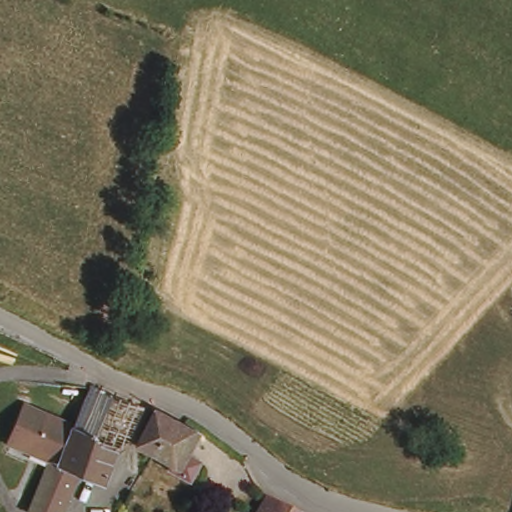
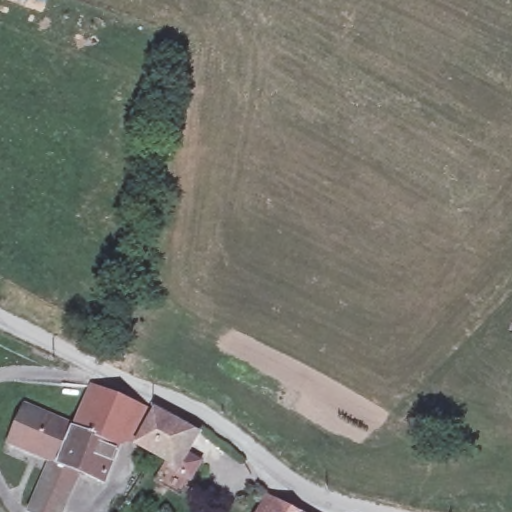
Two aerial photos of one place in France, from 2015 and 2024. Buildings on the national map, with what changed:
unchanged [(26,403),(77,429),(96,388),(144,408),(130,436),(119,442),(98,484),(77,475),(60,512),(34,512),(31,511),(42,485),(52,466),(35,457),(7,443),(26,403)]
unchanged [(155,412),(192,430),(182,452),(204,464),(195,483),(173,472),(175,462),(155,453),(138,446),(155,412)]
unchanged [(253,512),(262,497),(291,512),(253,512)]

